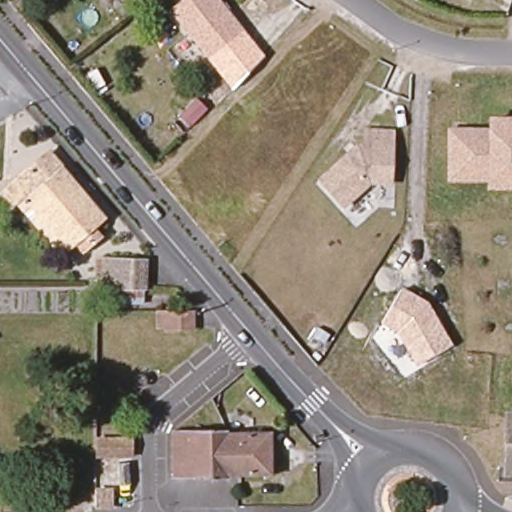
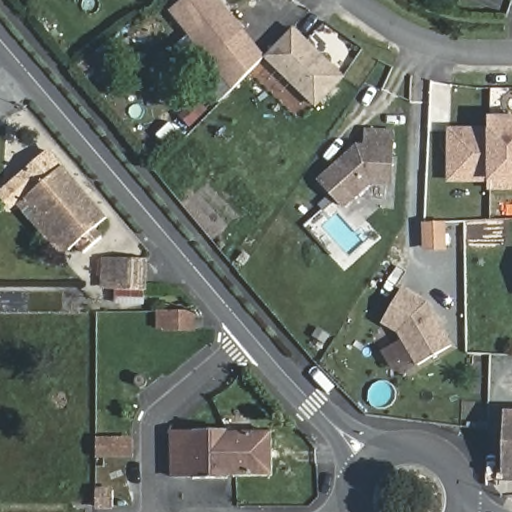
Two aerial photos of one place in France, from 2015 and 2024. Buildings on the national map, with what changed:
unchanged [(242,32),(208,58),(169,10),(182,0),(216,0),(242,32)]
new [(294,26),(346,76),(316,108),(264,58),(294,26)]
unchanged [(231,88),(208,58),(242,32),(263,56),(231,88)]
unchanged [(450,183),(450,134),(509,133),(509,123),(512,123),(512,182),(492,182),(450,183)]
unchanged [(368,124),(396,126),(393,176),(373,176),(345,200),(321,174),(349,148),(359,140),(368,140),(368,124)]
unchanged [(113,226),(75,261),(34,229),(38,223),(14,204),(8,210),(0,198),(0,187),(44,149),(113,226)]
unchanged [(492,182),(512,182),(512,189),(492,189),(492,182)]
unchanged [(135,261),(135,287),(94,288),(96,262),(135,261)]
unchanged [(428,301),(453,344),(415,364),(397,332),(382,324),(402,288),(428,301)]
unchanged [(190,334),(186,334),(158,333),(158,316),(187,316),(191,320),(190,334)]
unchanged [(137,385),(137,386),(137,387),(137,388),(137,389),(136,390),(136,391),(135,391),(135,392),(134,393),(133,394),(132,394),(132,395),(131,395),(130,395),(130,396),(129,396),(128,396),(127,396),(126,396),(125,396),(124,396),(123,396),(122,396),(121,396),(121,395),(120,395),(119,395),(119,394),(118,394),(118,393),(117,393),(117,392),(116,392),(116,391),(116,390),(115,390),(115,389),(115,388),(114,388),(114,387),(114,386),(114,385),(114,384),(114,383),(114,382),(115,382),(115,381),(115,380),(116,379),(116,378),(117,378),(117,377),(118,377),(118,376),(119,376),(119,375),(120,375),(121,375),(121,374),(122,374),(123,374),(124,374),(125,374),(126,374),(127,374),(128,374),(129,374),(130,374),(130,375),(131,375),(132,375),(133,376),(134,376),(134,377),(135,377),(135,378),(135,379),(136,379),(136,380),(137,380),(137,381),(137,382),(137,383),(137,384),(137,385),(138,385),(137,385)]
unchanged [(508,419),(512,419),(512,476),(506,475),(508,419)]
unchanged [(222,480),(168,478),(167,454),(166,431),(185,431),(269,432),(269,434),(267,477),(222,477),(222,480)]
unchanged [(129,459),(111,460),(111,512),(92,512),(91,435),(129,434),(129,459)]

